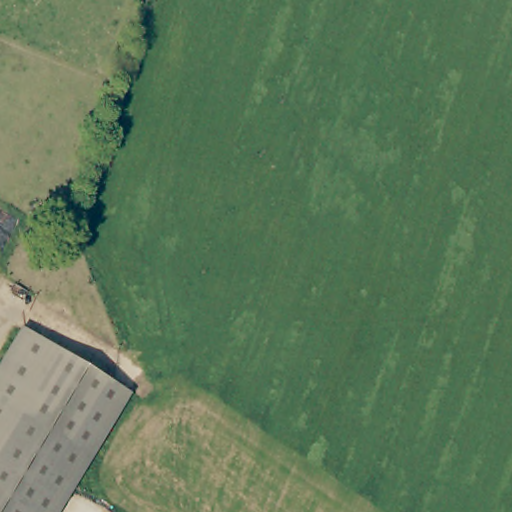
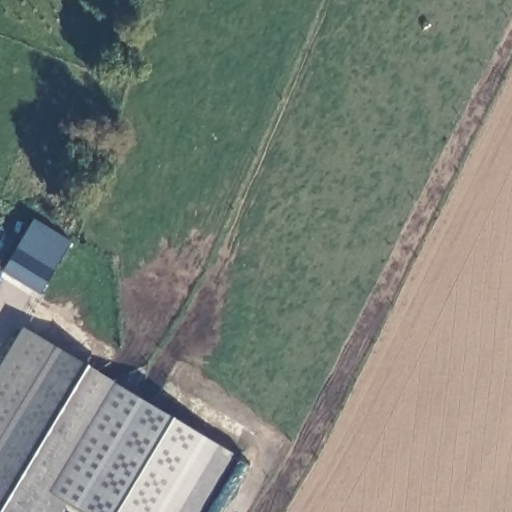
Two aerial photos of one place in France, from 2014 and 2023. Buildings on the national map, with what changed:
new [(33,219),(70,241),(39,294),(4,272),(33,219)]
unchanged [(128,389),(55,512),(0,512),(0,361),(21,325),(128,389)]
new [(128,389),(218,444),(178,512),(82,512),(62,500),(128,389)]

